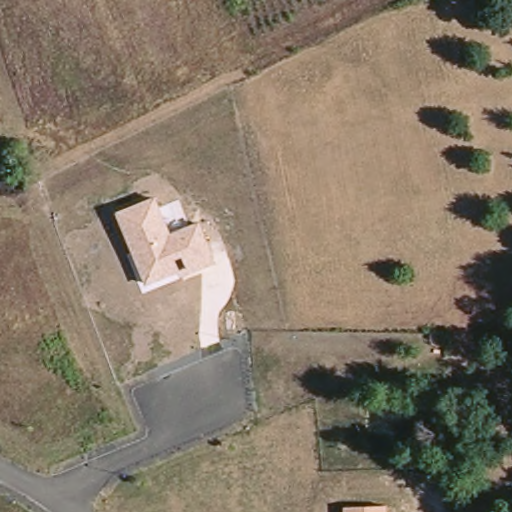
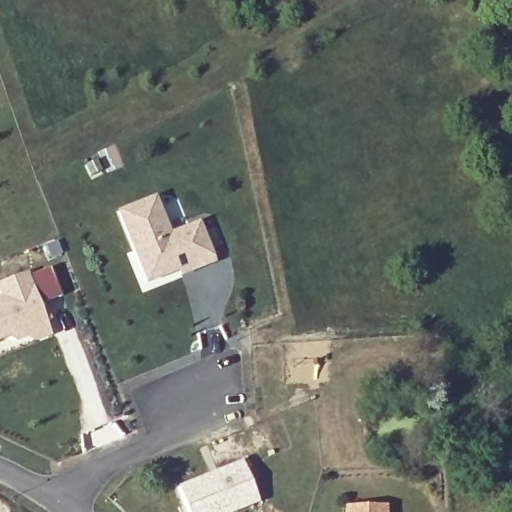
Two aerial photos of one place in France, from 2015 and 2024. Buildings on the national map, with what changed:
unchanged [(157,196),(169,234),(202,220),(217,263),(182,277),(180,272),(143,285),(116,212),(157,196)]
new [(28,271),(30,275),(52,265),(64,293),(42,304),(53,333),(32,342),(30,337),(15,343),(10,337),(0,341),(0,283),(28,271)]
new [(258,501),(233,512),(185,512),(175,488),(241,461),(258,501)]
unchanged [(390,503),(390,512),(347,512),(347,505),(390,503)]

